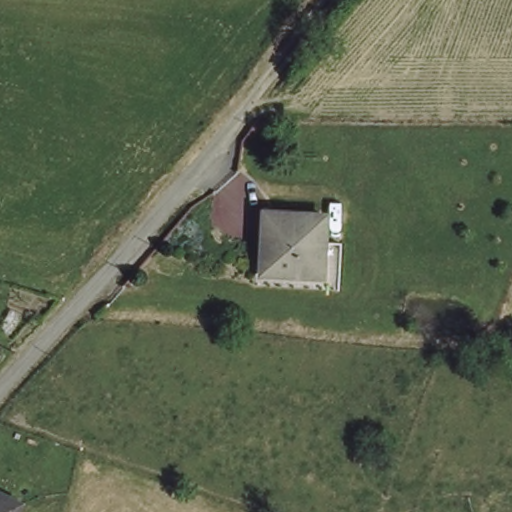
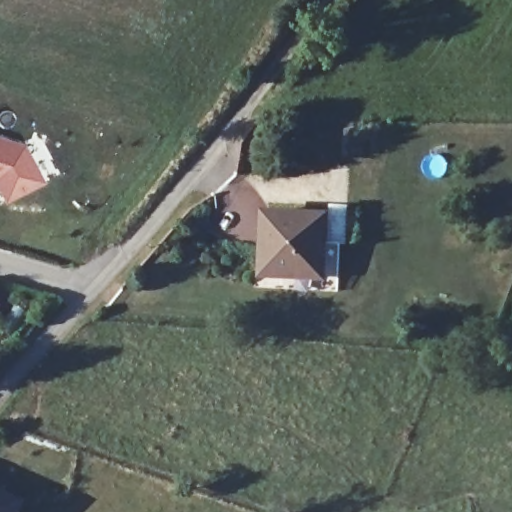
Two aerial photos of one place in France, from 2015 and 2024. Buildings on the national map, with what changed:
new [(39,185),(5,207),(0,200),(0,141),(17,146),(39,185)]
unchanged [(329,222),(327,275),(286,273),(284,280),(266,278),(269,219),(329,222)]
unchanged [(0,503),(12,512),(0,512),(0,503)]

